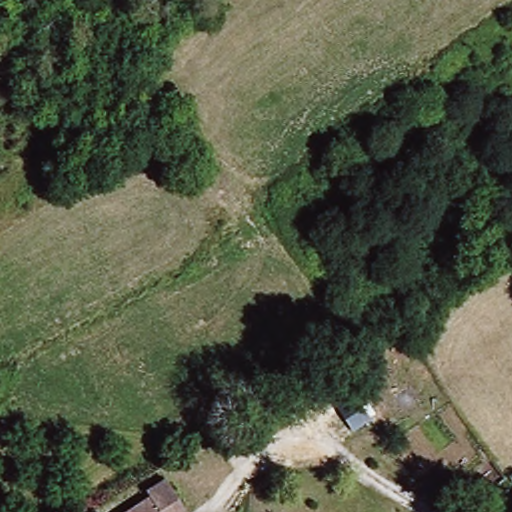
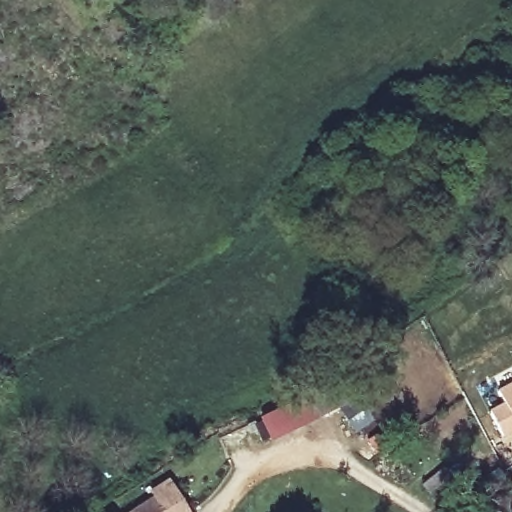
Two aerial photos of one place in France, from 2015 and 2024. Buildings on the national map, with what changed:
new [(502,436),(489,411),(504,403),(499,391),(512,383),(512,431),(502,436)]
unchanged [(373,408),(356,417),(344,396),(361,384),(373,408)]
unchanged [(158,499),(156,493),(173,479),(194,512),(167,512),(158,499)]
unchanged [(167,512),(139,512),(158,499),(167,512)]

